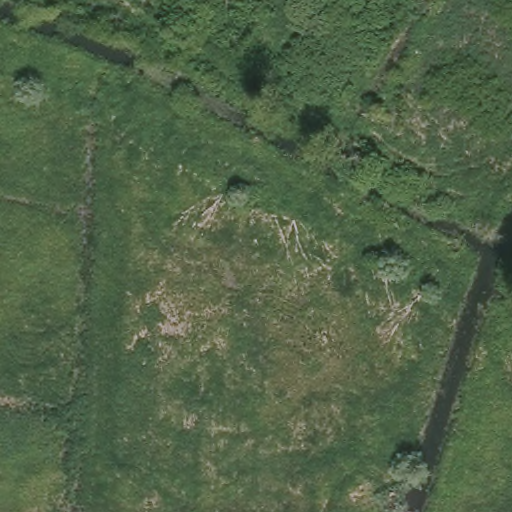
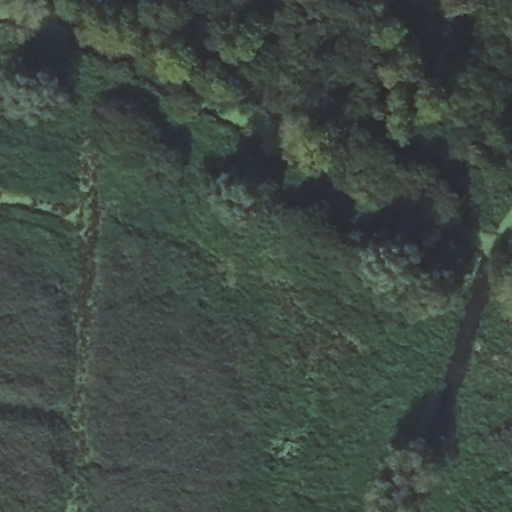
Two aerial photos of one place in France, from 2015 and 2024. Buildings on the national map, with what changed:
[]

